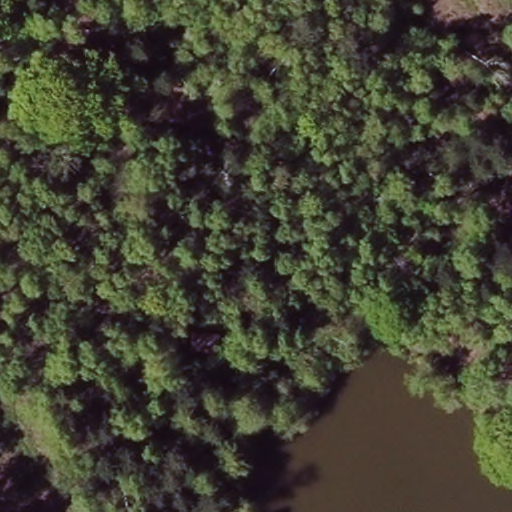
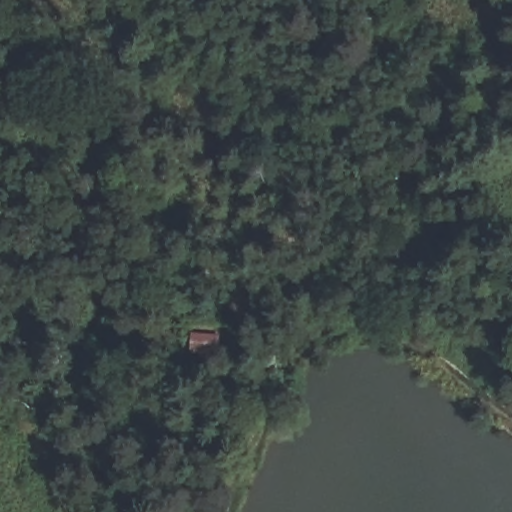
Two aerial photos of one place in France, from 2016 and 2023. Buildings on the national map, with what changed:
unchanged [(222,337),(222,355),(190,354),(190,335),(222,337)]

